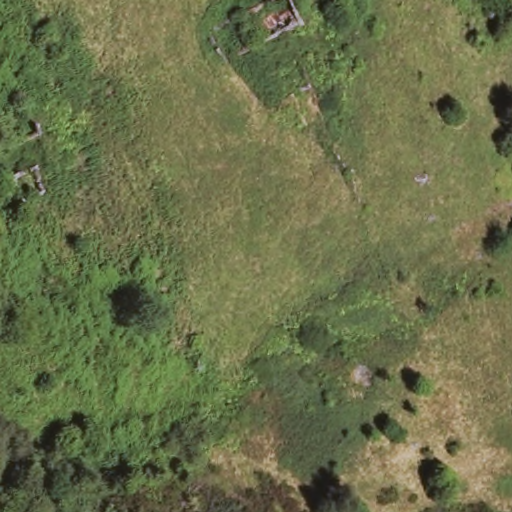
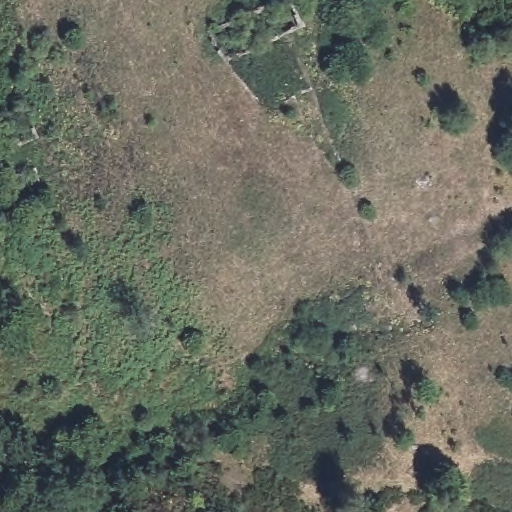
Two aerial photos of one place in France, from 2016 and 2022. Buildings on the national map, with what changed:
unchanged [(287,0),(291,7),(299,25),(252,47),(237,14),(267,0),(287,0)]

